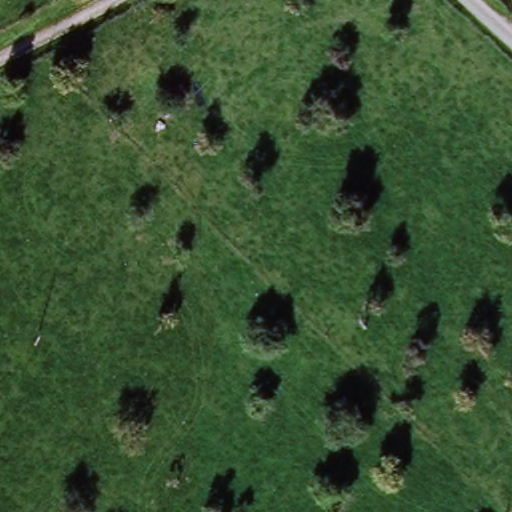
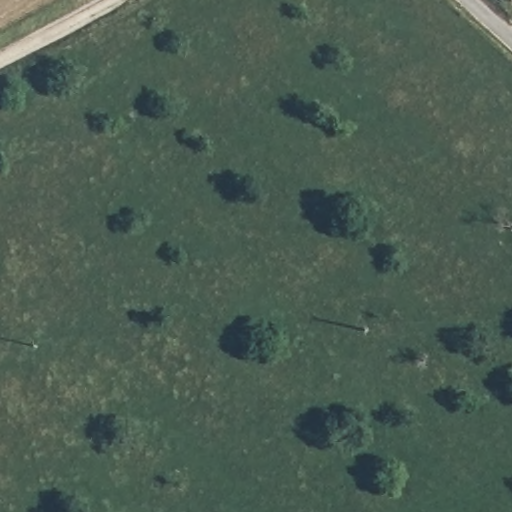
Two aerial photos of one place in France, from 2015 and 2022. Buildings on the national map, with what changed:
[]

